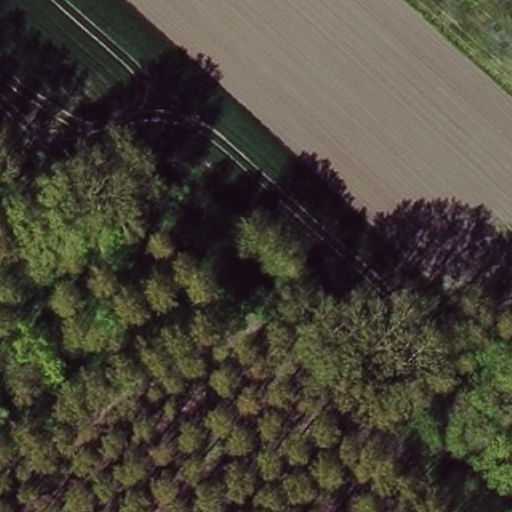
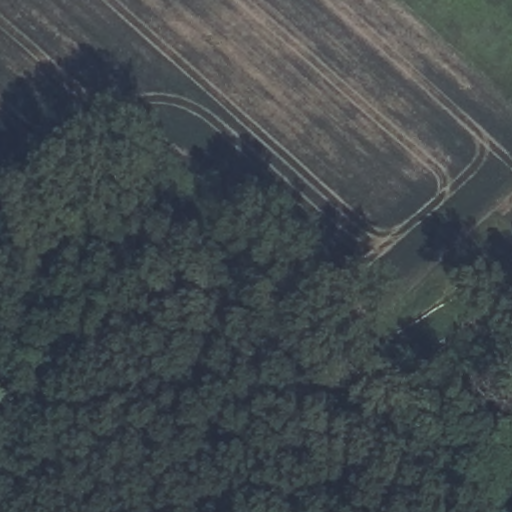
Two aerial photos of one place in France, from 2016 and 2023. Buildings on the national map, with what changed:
unchanged [(496,423),(512,411),(512,450),(511,451),(496,423)]

